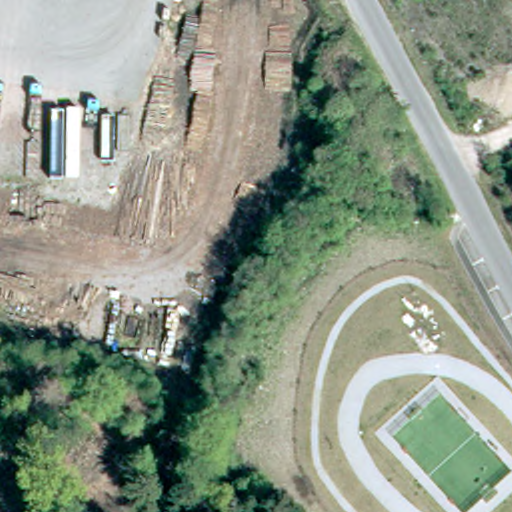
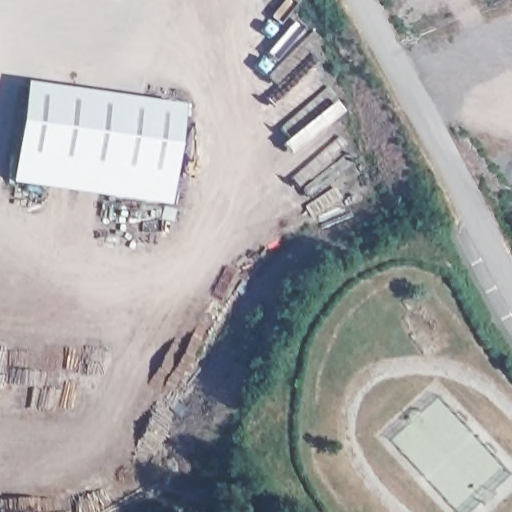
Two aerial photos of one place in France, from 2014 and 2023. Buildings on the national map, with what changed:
new [(176,110),(166,207),(18,190),(32,93),(176,110)]

